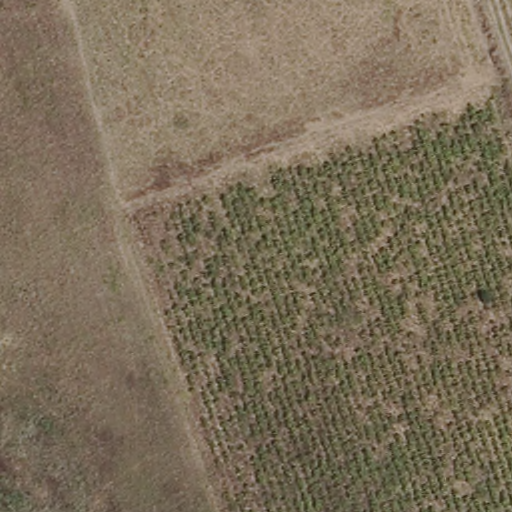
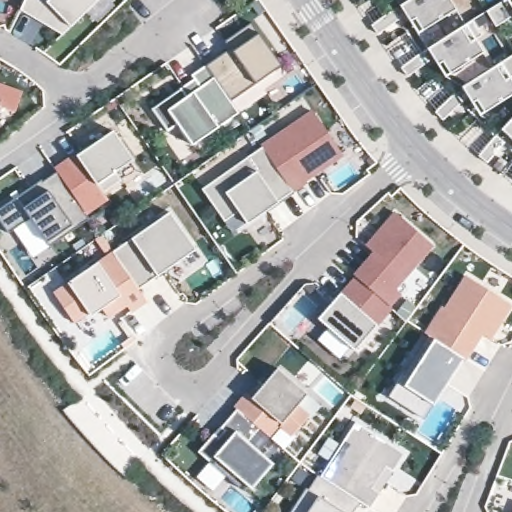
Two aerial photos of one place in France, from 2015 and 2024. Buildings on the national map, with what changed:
new [(51,19),(45,21),(20,9),(25,0),(95,0),(67,33),(51,19)]
new [(444,0),(451,11),(422,30),(405,3),(408,0),(444,0)]
new [(512,0),(512,15),(495,26),(486,11),(504,0),(512,0)]
new [(393,10),(398,19),(383,29),(377,34),(371,25),(377,21),(393,10)]
new [(472,20),(482,34),(470,42),(478,55),(449,73),(432,46),(472,20)]
new [(258,32),(283,64),(256,84),(232,102),(223,89),(207,64),(229,49),(223,41),(251,23),(258,32)]
new [(422,53),(428,60),(412,72),(407,76),(401,68),(407,64),(422,53)]
new [(510,56),(512,55),(512,77),(505,81),(512,92),(512,95),(484,113),(466,84),(510,56)]
new [(14,110),(0,105),(0,83),(22,91),(14,110)]
new [(232,102),(240,114),(192,148),(178,128),(168,135),(152,110),(187,86),(192,94),(202,88),(210,99),(223,89),(232,102)]
new [(455,94),(461,101),(447,114),(442,119),(435,111),(440,107),(455,94)]
new [(313,111),(342,153),(305,179),(306,181),(292,190),(262,146),(313,111)]
new [(512,118),(512,132),(505,125),(512,118)]
new [(495,136),(503,143),(490,157),(487,162),(478,156),(483,150),(495,136)]
new [(100,139),(120,169),(97,184),(107,198),(85,213),(57,172),(55,170),(100,139)]
new [(227,218),(204,185),(262,146),(292,190),(292,191),(277,202),(273,197),(264,204),(266,207),(245,221),(234,229),(227,218)]
new [(38,184),(57,172),(85,213),(90,219),(50,247),(30,218),(8,233),(0,221),(0,208),(37,183),(38,184)]
new [(197,249),(158,277),(138,290),(112,253),(131,239),(168,211),(197,249)]
new [(375,254),(367,247),(396,213),(432,244),(395,287),(400,292),(388,305),(357,278),(355,276),(375,254)]
new [(112,253),(138,290),(147,303),(132,314),(127,305),(108,318),(100,307),(91,307),(87,309),(90,314),(75,324),(53,293),(112,253)]
new [(340,293),(342,295),(357,278),(388,305),(373,323),(377,324),(354,350),(318,319),(340,293)]
new [(444,308),(447,310),(467,278),(510,304),(488,338),(480,333),(464,358),(440,343),(427,334),(444,308)]
new [(464,358),(425,420),(393,399),(418,361),(425,366),(440,343),(464,358)]
new [(248,394),(252,398),(278,369),(305,392),(294,406),(306,416),(292,433),(280,423),(268,436),(257,427),(237,409),(248,394)]
new [(217,425),(221,428),(237,409),(257,427),(246,440),(271,462),(249,488),(243,483),(239,488),(196,450),(212,432),(217,425)]
new [(355,422),(404,454),(392,472),(385,467),(372,488),(379,493),(369,508),(360,502),(320,476),(355,422)]
new [(305,488),(308,489),(317,474),(320,476),(360,502),(353,512),(290,512),(305,488)]

